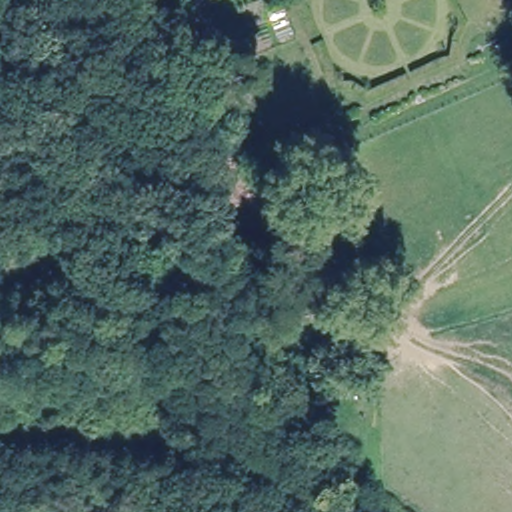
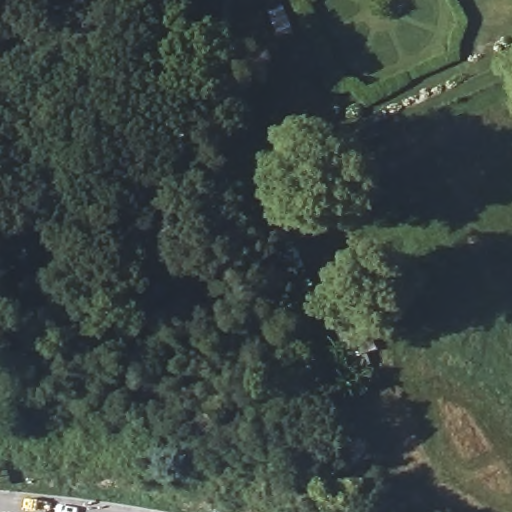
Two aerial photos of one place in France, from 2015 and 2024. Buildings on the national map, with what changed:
unchanged [(189,5),(187,0),(203,0),(189,5)]

